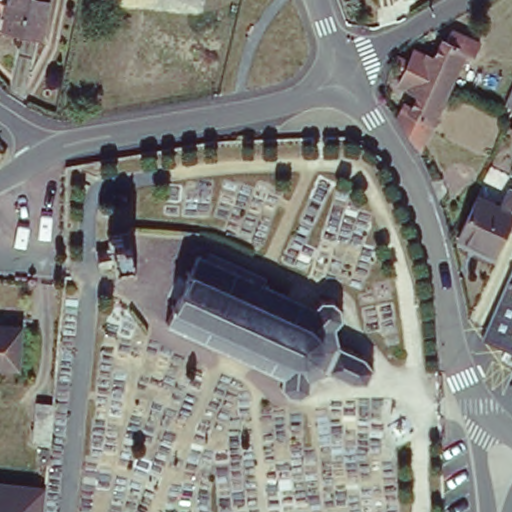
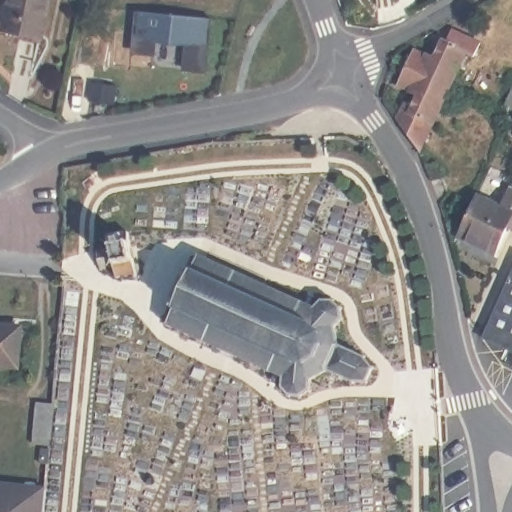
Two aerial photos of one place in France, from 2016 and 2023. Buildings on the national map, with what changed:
unchanged [(3,27),(9,0),(47,0),(39,37),(3,27)]
new [(213,12),(208,74),(186,73),(189,43),(158,42),(157,56),(133,53),(139,5),(213,12)]
unchanged [(412,63),(416,52),(426,57),(426,56),(435,60),(443,42),(447,45),(452,34),(472,42),(450,89),(397,65),(400,57),(412,63)]
unchanged [(393,115),(400,99),(417,97),(410,95),(410,93),(400,89),(405,76),(394,71),(397,65),(450,89),(432,126),(422,150),(393,115)]
unchanged [(512,232),(500,257),(464,239),(478,207),(495,215),(508,190),(512,192),(512,232)]
unchanged [(114,264),(97,267),(95,250),(110,247),(108,234),(128,232),(127,243),(130,260),(135,273),(116,277),(114,264)]
unchanged [(204,334),(203,336),(200,335),(201,333),(187,327),(187,329),(184,327),(185,326),(169,319),(168,321),(165,319),(166,317),(164,317),(166,313),(167,315),(174,302),(170,300),(172,297),(175,298),(188,270),(184,267),(186,264),(190,266),(197,253),(194,252),(196,249),(198,250),(198,247),(203,250),(201,251),(216,258),(217,256),(219,257),(218,259),(231,266),(232,263),(235,265),(234,267),(249,273),(250,271),(253,272),(251,275),(265,281),(266,277),(268,279),(267,282),(280,287),(281,285),(285,287),(284,290),(297,296),(298,292),(301,295),(300,297),(313,303),(318,297),(318,294),(323,293),(323,296),(331,297),(332,293),(335,296),(333,297),(339,301),(342,300),(343,303),(340,305),(341,312),(343,312),(342,316),(340,315),(335,322),(338,340),(351,346),(352,344),(354,346),(353,348),(361,352),(363,351),(365,352),(364,354),(371,362),(373,361),(373,365),(370,365),(366,375),(367,377),(365,378),(363,377),(353,377),(352,380),(349,378),(350,377),(340,372),(339,373),(337,372),(338,371),(328,366),(312,374),(309,382),(311,382),(309,386),(307,385),(301,389),(302,392),(299,392),(297,390),(289,387),(288,391),(286,389),(287,387),(283,382),(280,383),(279,381),(281,380),(282,370),(270,364),(269,366),(266,365),(267,363),(253,357),(253,359),(250,358),(251,356),(237,350),(236,352),(233,350),(234,348),(220,342),(220,343),(216,342),(217,341),(204,334)]
unchanged [(481,347),(486,335),(512,276),(512,360),(481,347)]
unchanged [(12,367),(0,366),(0,325),(16,326),(12,367)]
unchanged [(30,446),(35,402),(51,405),(47,447),(30,446)]
unchanged [(0,486),(43,491),(41,512),(0,512),(0,486)]

